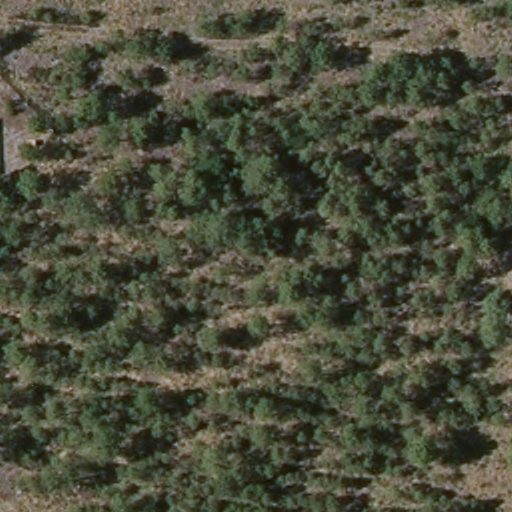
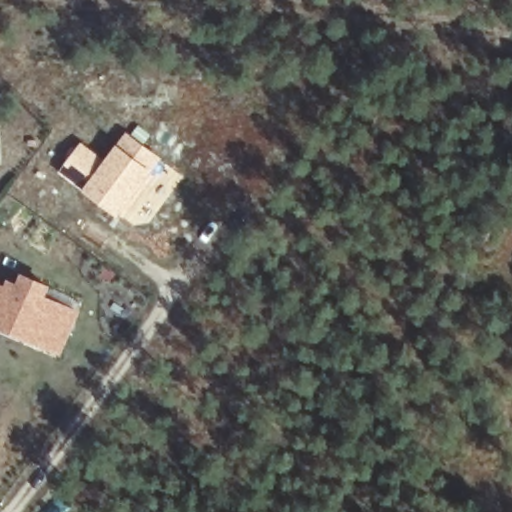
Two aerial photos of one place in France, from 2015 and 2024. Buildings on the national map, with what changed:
new [(120,214),(119,217),(87,193),(60,173),(81,143),(107,160),(127,132),(161,157),(151,173),(156,176),(125,218),(120,214)]
new [(7,289),(10,283),(20,286),(24,276),(45,286),(42,295),(77,312),(65,337),(30,321),(24,337),(21,341),(0,333),(0,332),(5,319),(0,316),(0,285),(7,289)]

